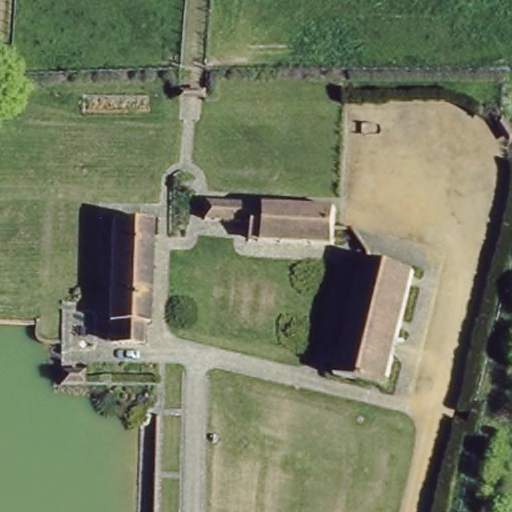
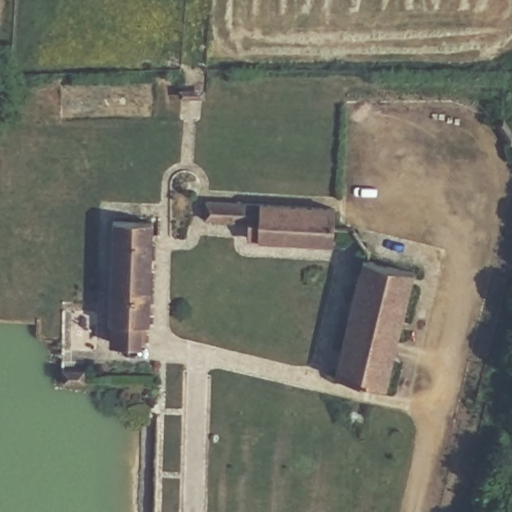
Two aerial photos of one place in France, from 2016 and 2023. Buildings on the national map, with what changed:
unchanged [(251,222),(206,219),(206,202),(336,209),(334,245),(259,241),(250,240),(251,222)]
unchanged [(154,222),(153,323),(146,323),(145,343),(111,342),(113,222),(154,222)]
unchanged [(410,273),(381,388),(331,376),(360,260),(410,273)]
unchanged [(86,384),(64,383),(65,372),(78,372),(86,372),(86,380),(86,384)]

